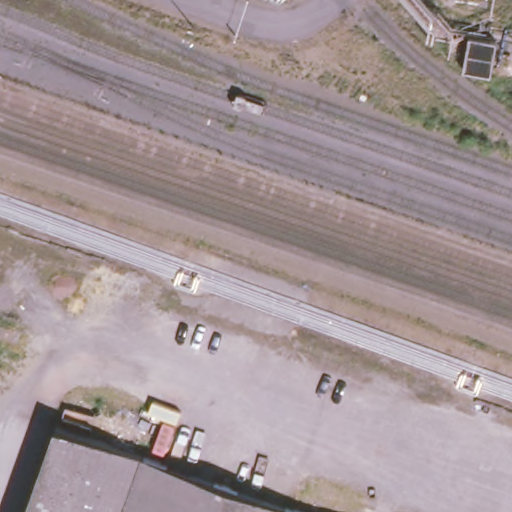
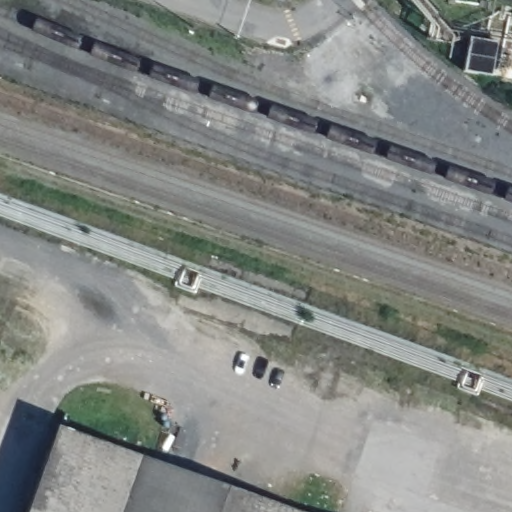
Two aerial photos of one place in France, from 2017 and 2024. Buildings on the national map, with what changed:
unchanged [(473,36),(501,40),(496,75),(468,70),(473,36)]
unchanged [(0,488),(13,450),(44,463),(58,427),(145,460),(293,512),(0,512),(0,488)]

